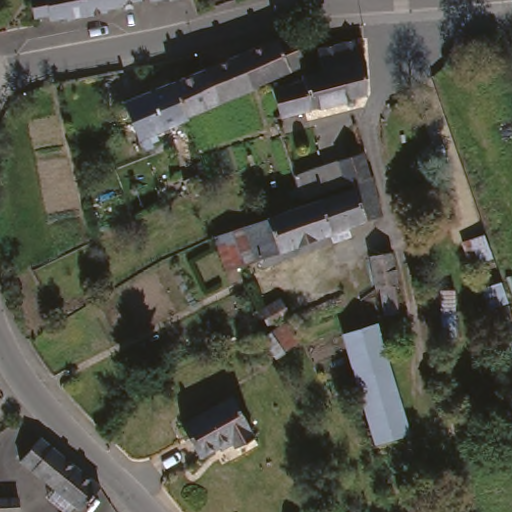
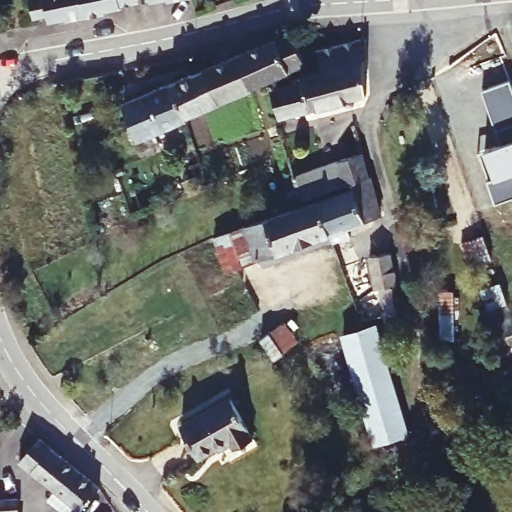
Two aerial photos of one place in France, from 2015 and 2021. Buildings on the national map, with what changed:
unchanged [(163,3),(149,6),(148,2),(116,8),(117,11),(102,14),(102,18),(65,25),(64,19),(45,23),(45,19),(32,21),(28,1),(36,0),(183,0),(185,4),(164,7),(163,3)]
unchanged [(202,71),(290,41),(292,47),(295,56),(300,71),(214,106),(202,71)]
unchanged [(272,111),(267,94),(288,88),(297,85),(295,80),(295,76),(302,74),(315,70),(311,53),(331,48),(352,43),(352,96),(344,99),(273,116),(272,111)]
unchanged [(201,112),(190,116),(168,126),(163,128),(148,94),(146,91),(202,71),(214,106),(201,112)]
new [(512,92),(512,200),(491,207),(484,184),(491,182),(482,153),(498,148),(493,132),(481,93),(510,84),(512,92)]
unchanged [(148,94),(163,128),(130,141),(117,108),(148,94)]
unchanged [(301,201),(295,187),(295,186),(352,160),(357,175),(338,184),(301,201)]
unchanged [(320,243),(307,214),(303,206),(341,189),(338,184),(357,175),(368,222),(320,243)]
unchanged [(241,235),(303,206),(307,214),(320,243),(268,266),(251,273),(248,267),(223,276),(212,247),(236,237),(241,235)]
unchanged [(386,295),(392,323),(386,324),(376,325),(369,297),(367,297),(361,266),(378,263),(385,261),(392,293),(386,295)]
unchanged [(421,343),(425,296),(439,297),(436,344),(421,343)]
unchanged [(358,412),(340,367),(330,342),(362,330),(386,401),(358,412)]
unchanged [(373,451),(358,412),(386,401),(402,440),(373,451)]
unchanged [(229,454),(224,445),(192,464),(175,433),(224,404),(246,445),(229,454)]
unchanged [(79,512),(78,512),(70,504),(62,512),(58,512),(45,501),(54,492),(21,463),(41,440),(96,493),(79,512)]
unchanged [(395,496),(405,488),(425,512),(409,512),(395,496)]
unchanged [(17,495),(17,512),(0,512),(0,495),(17,495)]

